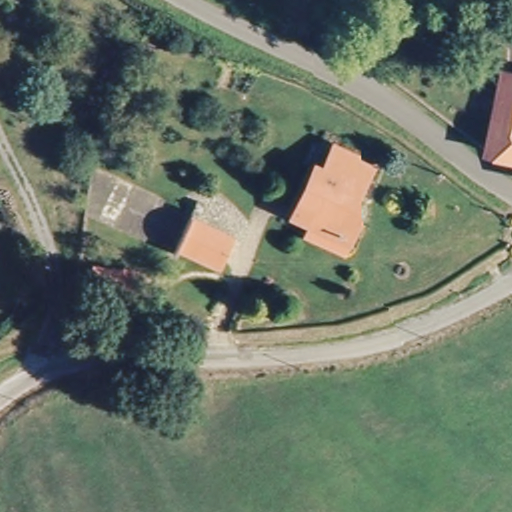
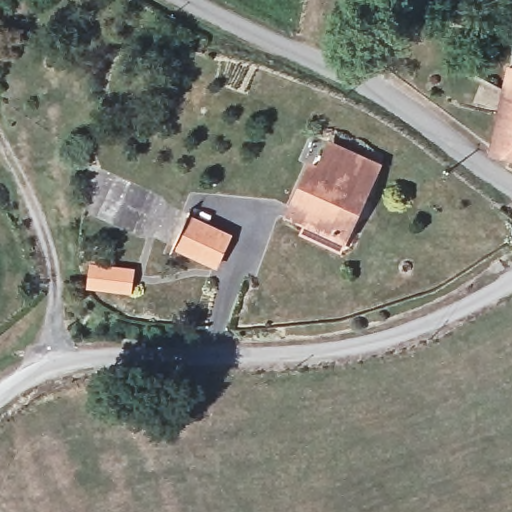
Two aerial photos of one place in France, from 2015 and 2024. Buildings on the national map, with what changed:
unchanged [(512,158),(500,155),(512,89),(512,158)]
unchanged [(312,233),(315,220),(292,212),(309,165),(318,168),(325,147),(372,162),(348,229),(345,242),(312,233)]
unchanged [(180,251),(186,221),(233,232),(225,263),(180,251)]
unchanged [(104,300),(86,295),(91,276),(109,282),(104,300)]

